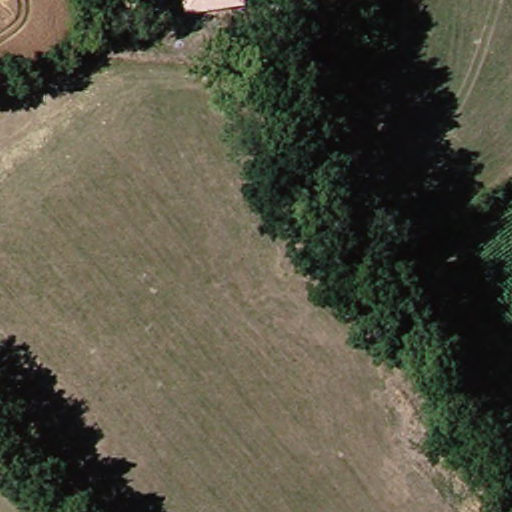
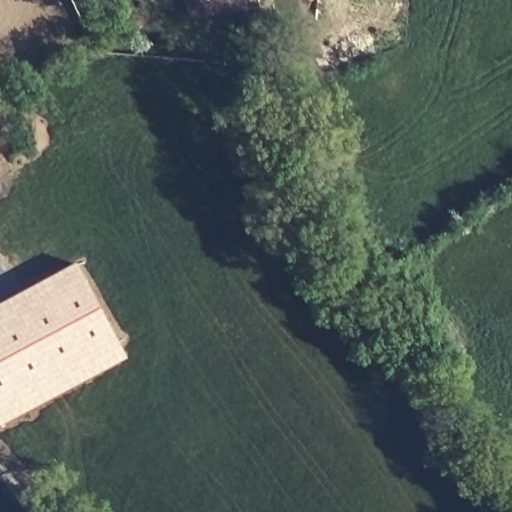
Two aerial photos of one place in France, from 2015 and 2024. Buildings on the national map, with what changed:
unchanged [(248,8),(194,15),(185,0),(247,0),(248,8)]
new [(0,424),(0,307),(80,265),(131,361),(2,427),(0,424)]

